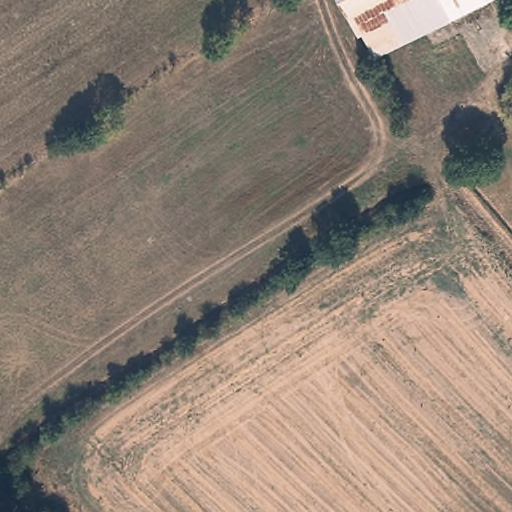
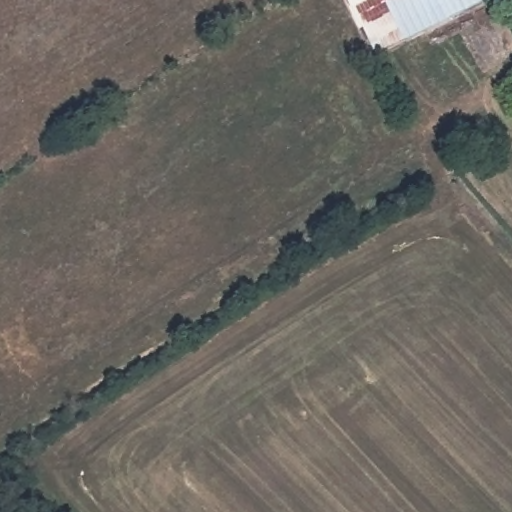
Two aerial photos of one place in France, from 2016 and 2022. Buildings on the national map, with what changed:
unchanged [(355,0),(486,0),(384,53),(355,0)]

